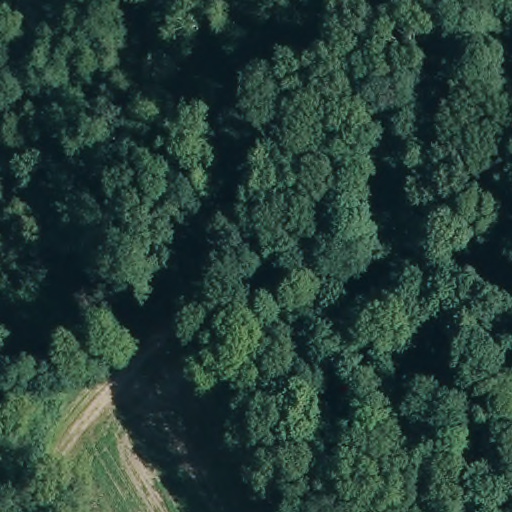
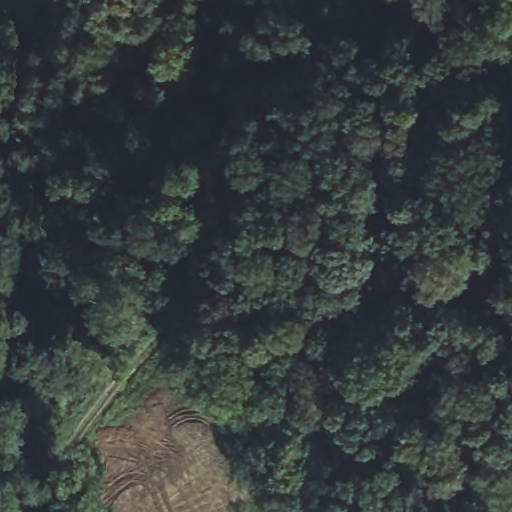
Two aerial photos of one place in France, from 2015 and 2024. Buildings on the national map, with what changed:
[]

